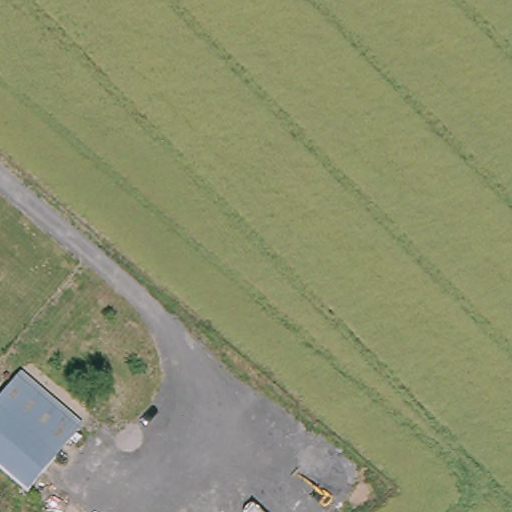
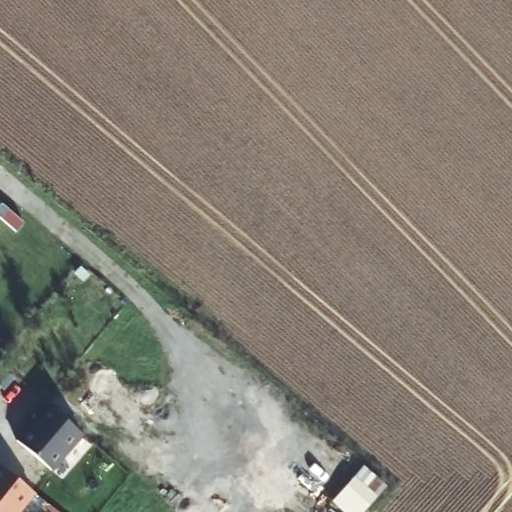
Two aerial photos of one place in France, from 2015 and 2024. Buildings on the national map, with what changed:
demolished [(79,433),(25,494),(0,473),(0,393),(13,377),(79,433)]
new [(15,438),(31,419),(29,417),(44,400),(83,436),(53,472),(15,438)]
new [(35,493),(21,512),(0,512),(0,465),(35,493)]
new [(381,485),(357,512),(345,512),(330,499),(360,467),(381,485)]

